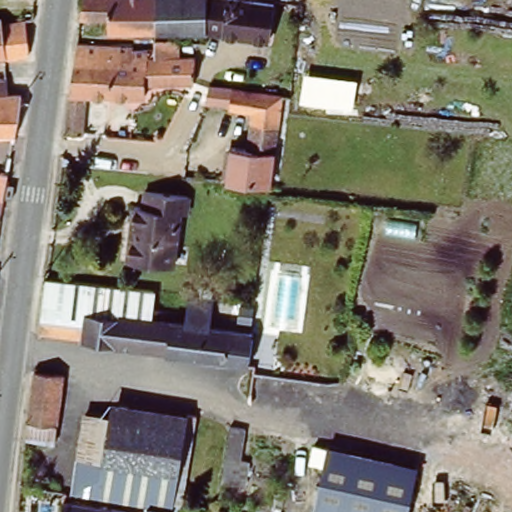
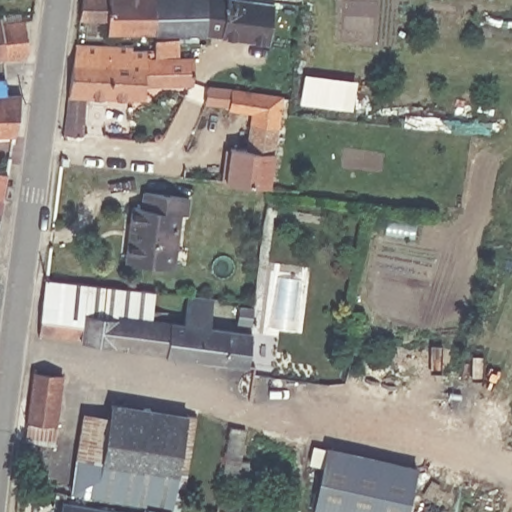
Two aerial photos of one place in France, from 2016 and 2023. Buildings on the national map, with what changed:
unchanged [(103,33),(103,21),(75,20),(78,0),(202,0),(201,33),(103,33)]
unchanged [(242,0),(270,4),(263,43),(201,33),(202,0),(242,0)]
unchanged [(2,24),(3,31),(27,28),(29,50),(27,62),(7,64),(6,65),(0,66),(0,24),(2,24)]
unchanged [(71,44),(107,46),(130,45),(130,49),(152,51),(152,39),(175,40),(175,43),(173,54),(152,53),(151,58),(188,58),(188,83),(140,85),(140,98),(65,95),(65,91),(71,44)]
unchanged [(357,82),(352,110),(300,103),(304,74),(357,82)]
unchanged [(3,81),(5,97),(0,98),(0,82),(3,81)]
unchanged [(227,90),(225,107),(205,104),(210,86),(227,90)]
unchanged [(242,150),(247,112),(225,110),(227,90),(250,93),(278,97),(271,147),(266,188),(221,183),(226,149),(242,150)]
unchanged [(5,97),(16,97),(11,136),(0,137),(0,98),(5,97)]
unchanged [(2,180),(0,194),(0,180),(2,180)]
unchanged [(135,207),(145,208),(146,192),(190,198),(188,215),(180,214),(174,267),(133,263),(128,263),(133,225),(135,207)]
unchanged [(45,280),(155,292),(152,311),(151,321),(186,324),(190,296),(215,298),(211,328),(252,333),(247,366),(166,356),(166,353),(80,340),(80,338),(39,332),(45,280)]
unchanged [(25,409),(28,377),(58,381),(51,430),(48,450),(20,444),(22,426),(25,409)]
unchanged [(80,415),(105,419),(107,403),(192,417),(183,481),(181,481),(173,479),(172,486),(71,469),(80,415)]
unchanged [(245,430),(240,462),(249,463),(245,488),(220,484),(228,427),(245,430)]
unchanged [(328,447),(416,467),(406,512),(313,512),(328,447)]
unchanged [(172,486),(173,479),(181,481),(176,512),(171,512),(167,511),(142,507),(142,512),(138,512),(138,506),(70,494),(71,469),(172,486)]
unchanged [(58,501),(122,512),(56,512),(58,501)]
unchanged [(167,511),(167,512),(142,512),(142,507),(167,511)]

